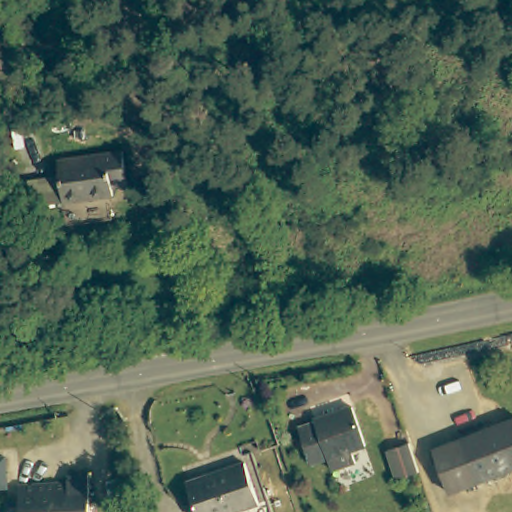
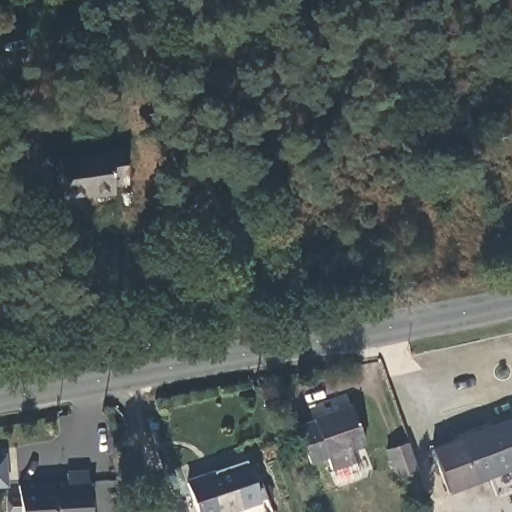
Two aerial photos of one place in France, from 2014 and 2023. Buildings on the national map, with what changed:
unchanged [(119,150),(126,181),(111,185),(114,192),(65,206),(56,167),(119,150)]
unchanged [(315,423),(313,420),(348,407),(362,448),(350,452),(354,465),(331,472),(327,460),(308,466),(296,429),(315,423)]
unchanged [(512,469),(451,496),(431,451),(512,417),(512,469)]
unchanged [(406,437),(417,470),(402,475),(391,442),(406,437)]
unchanged [(236,452),(256,508),(244,512),(195,512),(181,471),(236,452)]
unchanged [(5,488),(0,488),(0,457),(1,457),(5,488)]
unchanged [(67,486),(67,477),(88,477),(89,512),(20,512),(19,487),(67,486)]

